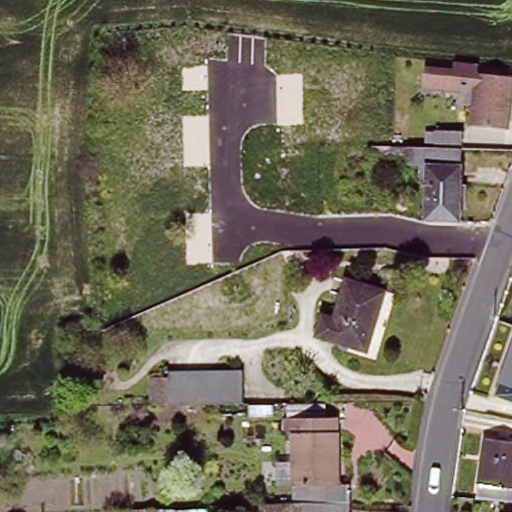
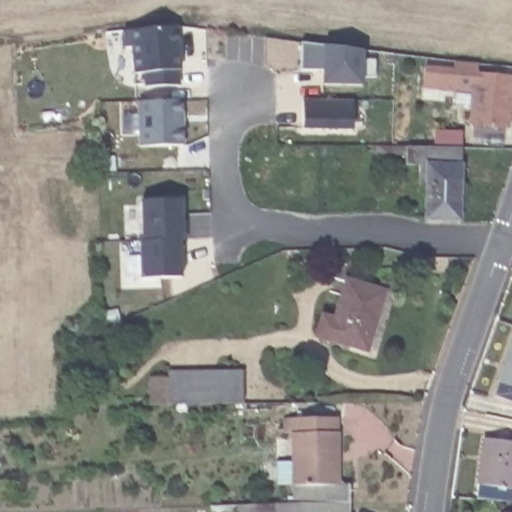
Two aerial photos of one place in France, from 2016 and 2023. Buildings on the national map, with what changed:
new [(179,25),(182,69),(180,69),(180,85),(148,86),(147,72),(137,73),(135,46),(127,47),(126,30),(179,25)]
new [(304,40),(365,48),(365,83),(325,82),(325,68),(302,67),(304,40)]
unchanged [(512,79),(512,109),(510,129),(474,126),(477,97),(425,91),(427,71),(455,74),(457,64),(480,67),(480,75),(512,79)]
new [(184,99),(185,144),(140,145),(139,101),(184,99)]
unchanged [(427,216),(429,177),(422,177),(422,163),(409,163),(409,153),(377,152),(377,150),(370,149),(371,143),(395,143),(435,144),(436,129),(464,129),(464,145),(462,217),(427,216)]
new [(184,198),(185,220),(187,220),(188,238),(182,238),(143,239),(142,199),(184,198)]
new [(143,239),(182,238),(183,275),(142,276),(140,239),(143,239)]
unchanged [(318,334),(325,314),(335,317),(348,278),(387,290),(368,350),(318,334)]
unchanged [(497,393),(512,350),(512,399),(497,393)]
unchanged [(194,408),(151,409),(151,383),(169,383),(169,375),(245,374),(245,406),(194,408)]
unchanged [(300,484),(282,483),(282,459),(300,459),(300,431),(293,431),(293,415),(345,415),(344,483),(356,483),(355,502),(305,502),(301,502),(300,484)]
unchanged [(479,497),(485,436),(512,440),(512,500),(479,497)]
unchanged [(301,502),(305,502),(355,502),(355,512),(242,512),(242,504),(301,502)]
demolished [(207,508),(208,512),(130,512),(130,508),(207,508)]

